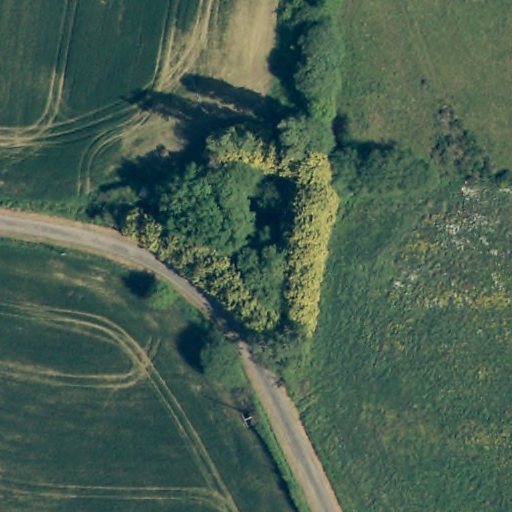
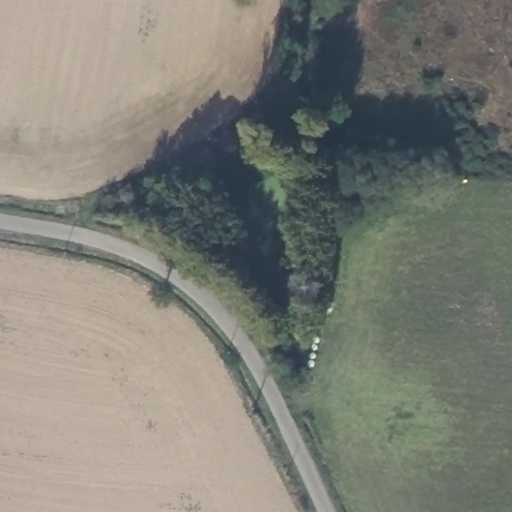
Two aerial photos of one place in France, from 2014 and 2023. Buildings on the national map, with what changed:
[]

